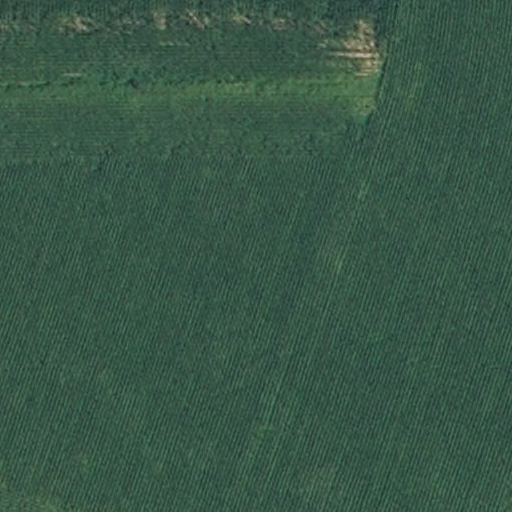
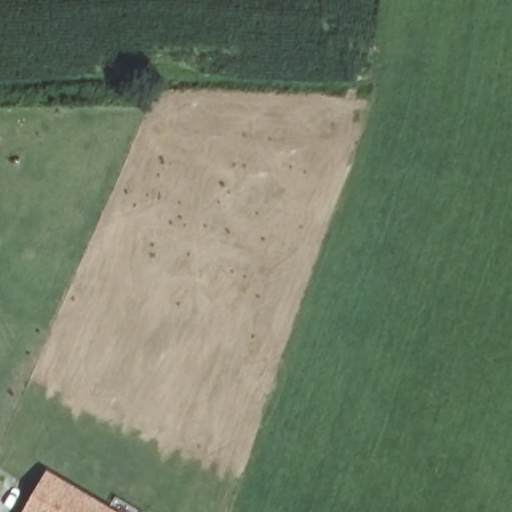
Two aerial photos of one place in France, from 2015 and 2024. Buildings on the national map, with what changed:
new [(115,512),(24,512),(48,473),(115,512)]

